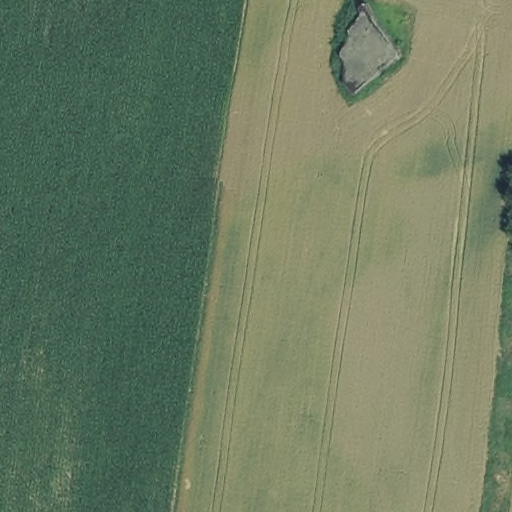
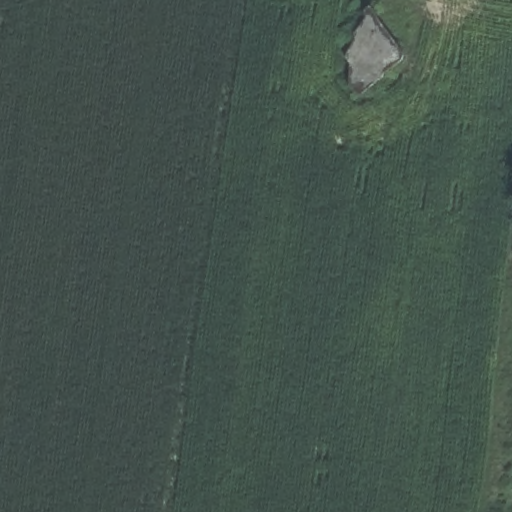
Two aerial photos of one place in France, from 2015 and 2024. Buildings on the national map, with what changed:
unchanged [(405,54),(360,93),(348,78),(345,26),(369,4),(405,54)]

